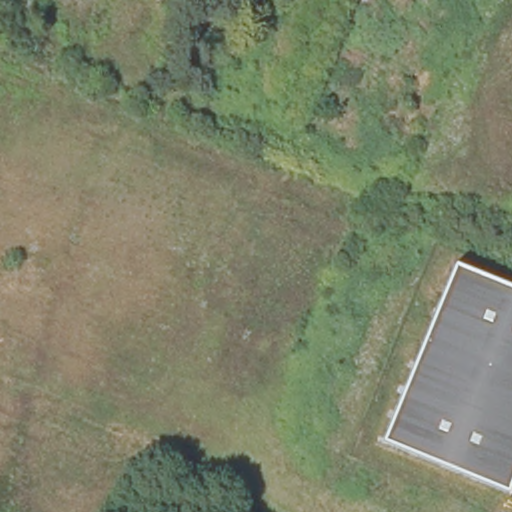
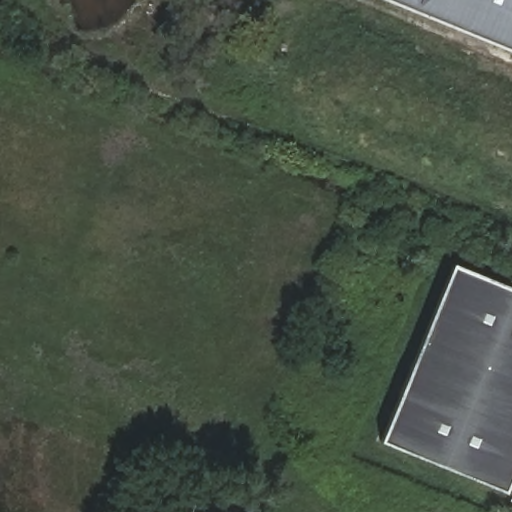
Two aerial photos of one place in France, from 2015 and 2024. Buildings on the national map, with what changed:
new [(392,0),(512,0),(512,49),(392,0)]
unchanged [(512,289),(512,467),(502,490),(380,440),(452,265),(512,289)]

